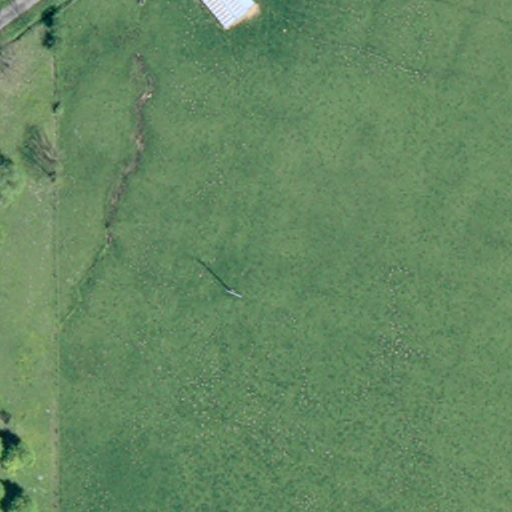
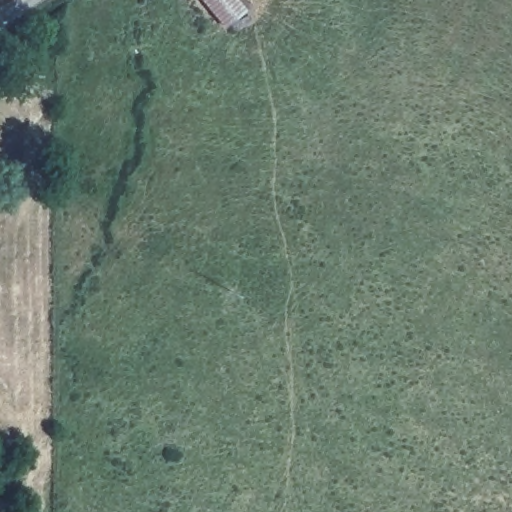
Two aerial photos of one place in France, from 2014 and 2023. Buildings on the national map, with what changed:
unchanged [(245,4),(237,10),(218,24),(200,0),(242,0),(245,4)]

